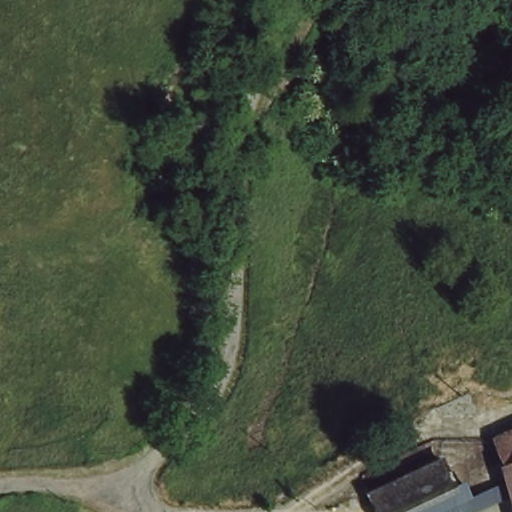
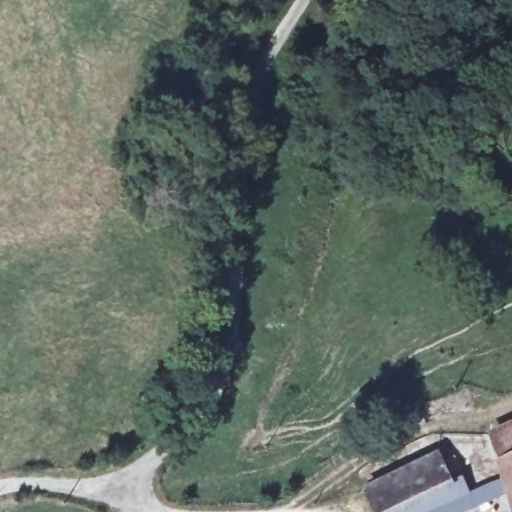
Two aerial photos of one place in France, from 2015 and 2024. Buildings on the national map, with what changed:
unchanged [(511,458),(499,424),(512,420),(512,461),(511,458)]
unchanged [(450,473),(454,480),(392,512),(381,512),(367,486),(440,451),(450,473)]
unchanged [(454,480),(450,473),(462,468),(467,483),(496,473),(504,491),(457,512),(392,512),(454,480)]

